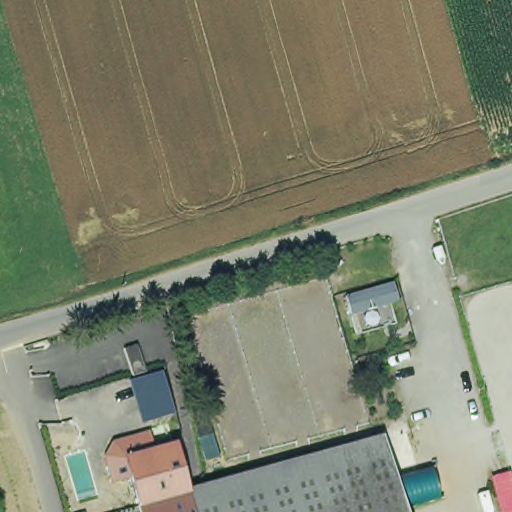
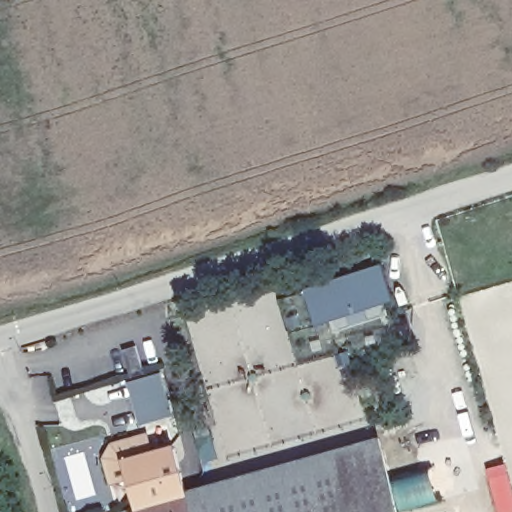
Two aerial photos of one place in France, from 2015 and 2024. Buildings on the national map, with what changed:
new [(381,262),(394,301),(311,325),(299,287),(381,262)]
new [(150,418),(141,389),(136,376),(164,368),(168,381),(176,410),(150,418)]
unchanged [(195,491),(381,440),(391,478),(429,467),(437,499),(398,512),(194,512),(188,492),(195,491)]
unchanged [(133,477),(124,480),(120,467),(128,465),(127,460),(176,447),(186,485),(139,498),(133,477)]
unchanged [(188,492),(194,512),(143,512),(141,505),(188,492)]

